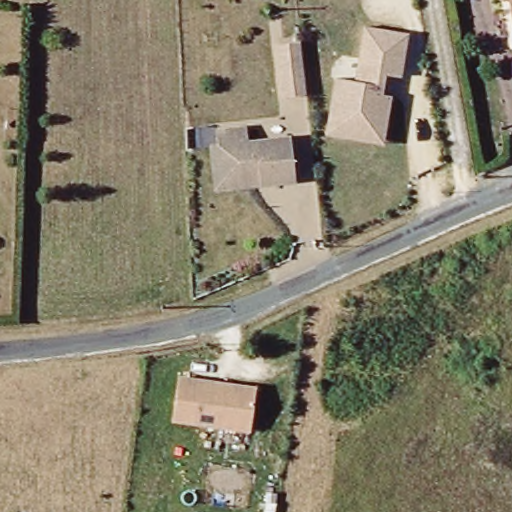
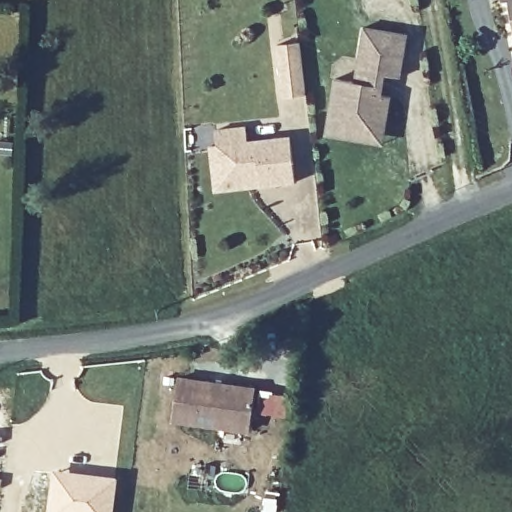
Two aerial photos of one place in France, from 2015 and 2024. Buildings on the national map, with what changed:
unchanged [(511,32),(507,0),(501,1),(501,0),(512,0),(512,35),(511,32)]
unchanged [(353,81),(363,25),(409,33),(402,78),(387,76),(385,93),(392,94),(384,146),(325,135),(334,78),(353,81)]
unchanged [(309,97),(283,100),(276,45),(301,41),(309,97)]
unchanged [(214,195),(209,150),(216,149),(215,134),(247,131),(248,145),(291,140),(296,186),(261,189),(261,191),(214,195)]
unchanged [(179,375),(256,389),(249,431),(171,417),(179,375)]
new [(118,476),(114,512),(46,512),(51,469),(118,476)]

